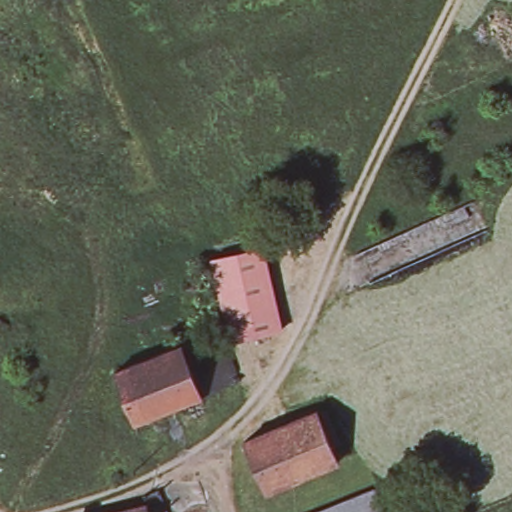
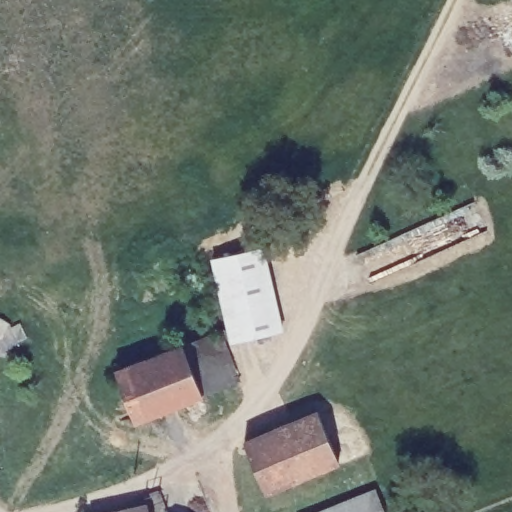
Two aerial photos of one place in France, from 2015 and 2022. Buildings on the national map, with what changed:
unchanged [(258,247),(282,331),(232,345),(210,260),(258,247)]
unchanged [(0,317),(12,324),(12,327),(20,322),(27,337),(16,342),(15,352),(5,356),(0,356),(0,317)]
unchanged [(219,331),(239,382),(202,396),(182,345),(219,331)]
unchanged [(116,371),(128,367),(182,345),(202,396),(174,407),(145,419),(136,422),(116,371)]
unchanged [(319,412),(340,463),(267,493),(245,442),(319,412)]
unchanged [(377,489),(386,512),(322,512),(377,489)]
unchanged [(147,505),(149,512),(120,512),(127,510),(147,505)]

